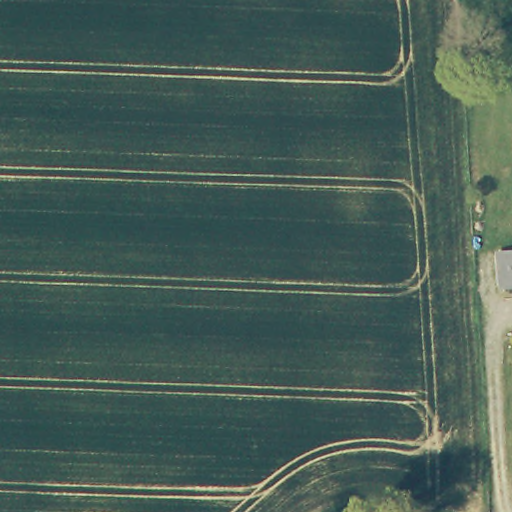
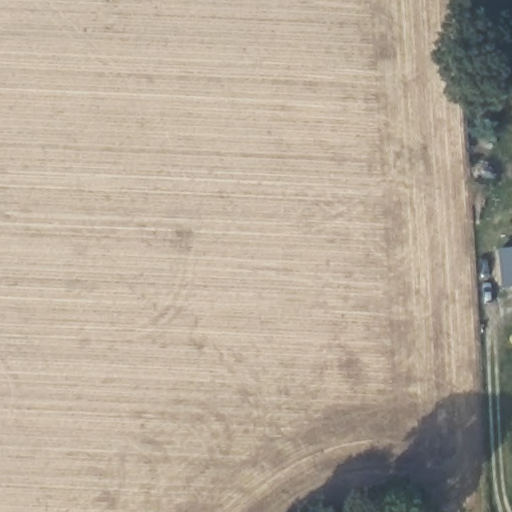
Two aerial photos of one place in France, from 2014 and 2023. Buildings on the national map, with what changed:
unchanged [(501,251),(512,251),(512,291),(507,292),(501,251)]

